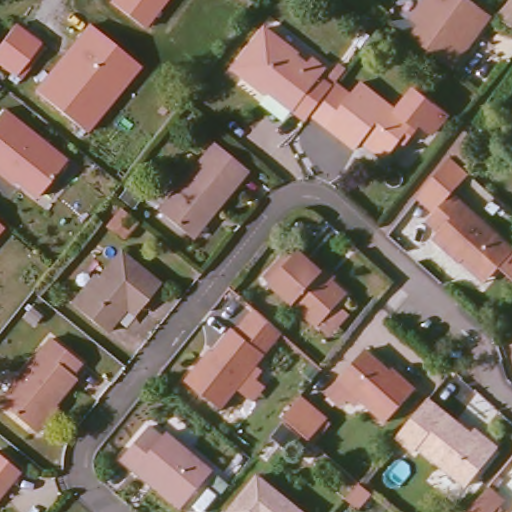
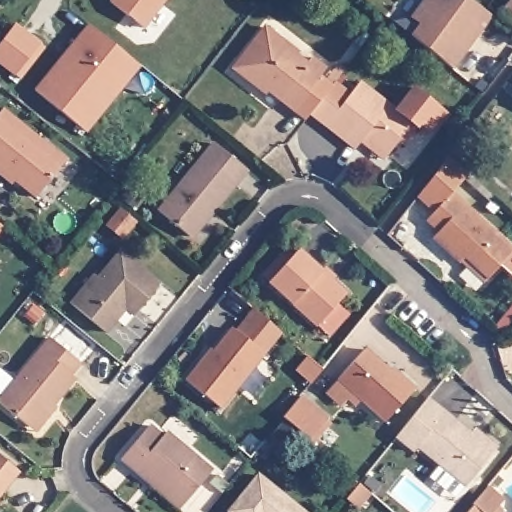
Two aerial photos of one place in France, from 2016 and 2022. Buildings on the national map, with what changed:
unchanged [(110,0),(168,0),(145,29),(110,0)]
unchanged [(459,52),(447,68),(406,36),(415,24),(407,17),(419,0),(469,0),(482,9),(488,14),(459,52)]
unchanged [(493,17),(507,0),(512,0),(512,31),(493,17)]
unchanged [(311,70),(322,79),(311,93),(306,100),(300,107),(297,112),(285,103),(261,84),(260,79),(255,75),(250,81),(230,66),(230,55),(257,20),(290,47),(289,49),(299,57),(305,51),(317,62),(311,70)]
unchanged [(89,23),(142,67),(87,133),(34,89),(89,23)]
unchanged [(42,42),(47,47),(22,79),(0,65),(0,45),(16,24),(42,42)]
unchanged [(358,79),(395,109),(411,122),(387,154),(383,160),(358,141),(352,151),(322,126),(358,79)]
unchanged [(414,86),(450,116),(408,171),(387,154),(411,122),(395,109),(414,86)]
unchanged [(10,182),(0,175),(0,111),(3,107),(65,157),(33,195),(12,179),(10,182)]
unchanged [(462,140),(482,156),(470,169),(452,152),(462,140)]
unchanged [(214,143),(247,170),(211,213),(209,211),(190,235),(159,210),(214,143)]
unchanged [(460,259),(459,260),(432,236),(437,229),(427,220),(450,194),(512,251),(487,277),(483,281),(460,259)]
unchanged [(136,221),(122,238),(107,225),(120,208),(136,221)]
unchanged [(0,227),(0,224),(2,225),(0,227)]
unchanged [(328,335),(318,325),(271,282),(265,277),(292,247),(297,252),(300,249),(325,270),(321,274),(330,282),(333,279),(348,293),(339,303),(350,314),(328,335)]
unchanged [(126,307),(107,332),(72,303),(82,290),(95,274),(100,278),(120,252),(160,283),(139,309),(135,314),(126,307)]
unchanged [(236,331),(255,309),(282,332),(216,407),(182,377),(202,353),(207,347),(210,350),(231,327),(236,331)]
unchanged [(28,427),(0,405),(0,399),(50,339),(79,362),(70,373),(75,377),(52,404),(56,407),(35,433),(28,427)]
unchanged [(344,399),(339,405),(325,394),(335,382),(333,380),(358,349),(385,371),(388,367),(395,372),(411,387),(382,421),(355,398),(350,404),(344,399)]
unchanged [(308,438),(303,434),(278,412),(296,391),(322,413),(327,418),(308,438)]
unchanged [(412,447),(407,452),(390,438),(422,399),(465,435),(467,431),(490,450),(488,453),(460,487),(412,447)]
unchanged [(135,472),(122,462),(150,426),(163,436),(167,432),(213,470),(186,505),(182,509),(135,472)]
unchanged [(0,494),(0,458),(18,471),(0,494)]
unchanged [(302,512),(230,512),(223,507),(253,471),(302,511),(302,512)]
unchanged [(359,482),(370,493),(357,507),(347,498),(359,482)]
unchanged [(503,503),(496,512),(472,512),(490,491),(503,503)]

